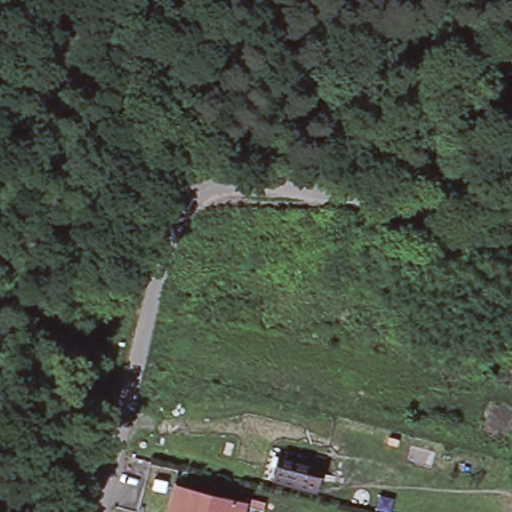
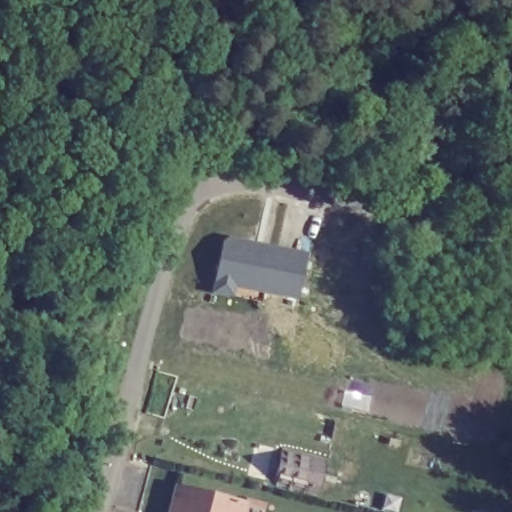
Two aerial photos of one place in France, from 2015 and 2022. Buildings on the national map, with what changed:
new [(307,252),(310,254),(309,256),(305,255),(296,305),(262,298),(263,291),(234,286),(232,297),(211,292),(223,242),(216,246),(215,244),(231,233),(308,247),(307,252)]
unchanged [(325,493),(283,482),(271,479),(280,447),(291,450),(333,460),(325,493)]
unchanged [(241,512),(168,512),(175,485),(243,502),(241,512)]

